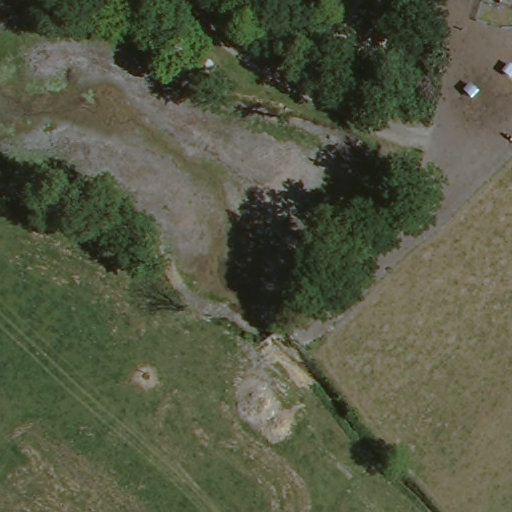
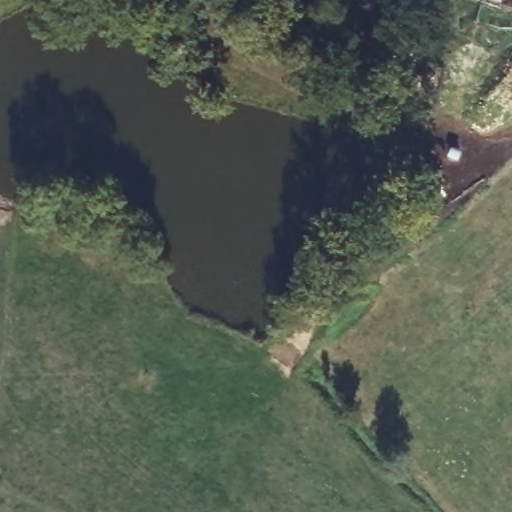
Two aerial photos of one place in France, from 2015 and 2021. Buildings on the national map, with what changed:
unchanged [(457,0),(500,0),(496,14),(457,0)]

